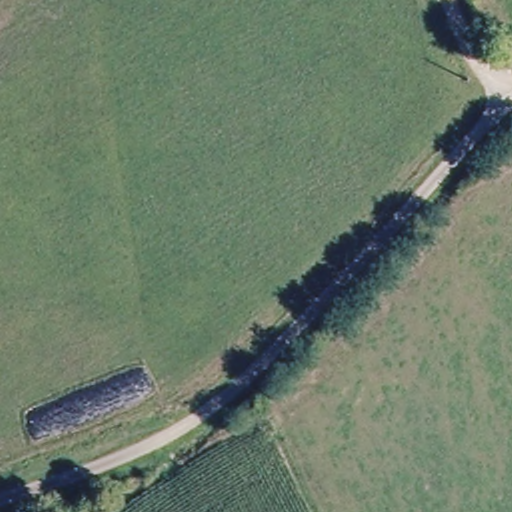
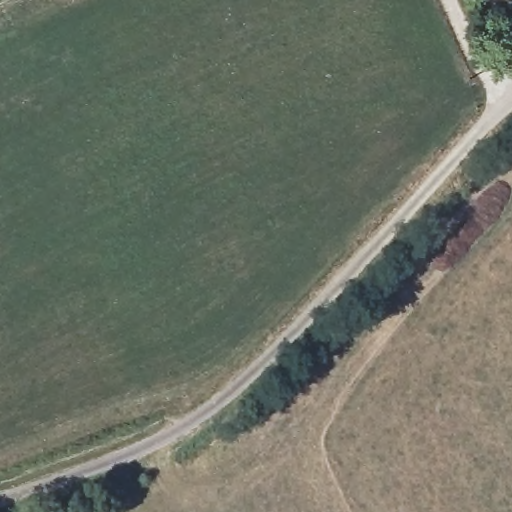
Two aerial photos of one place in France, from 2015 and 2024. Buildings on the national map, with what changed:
[]

